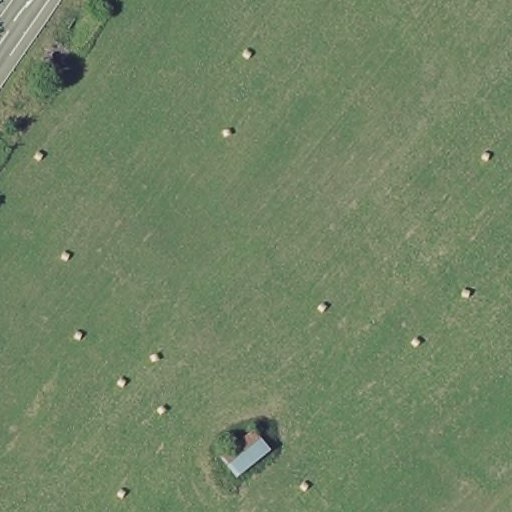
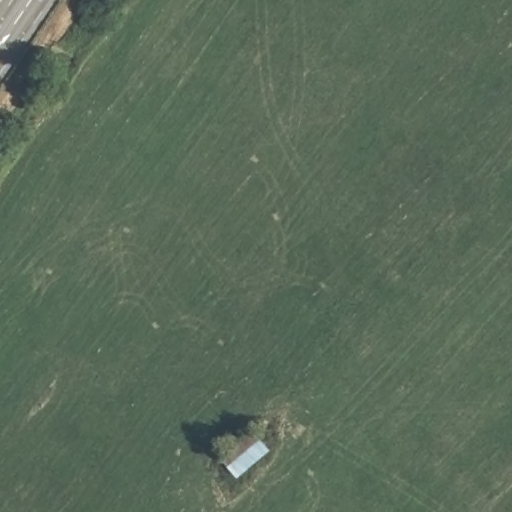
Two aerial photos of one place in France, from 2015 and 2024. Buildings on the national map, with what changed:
unchanged [(224,455),(257,428),(272,450),(241,477),(224,455)]

